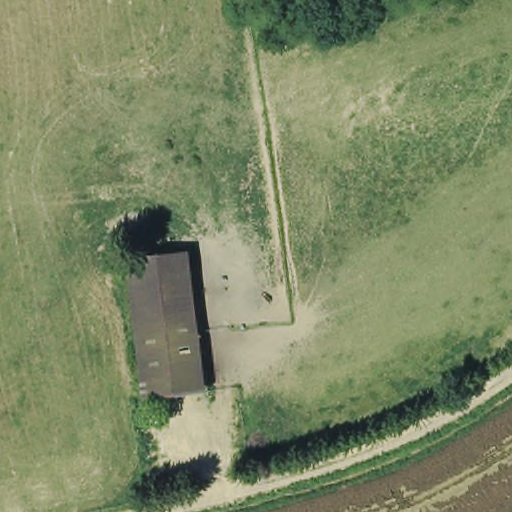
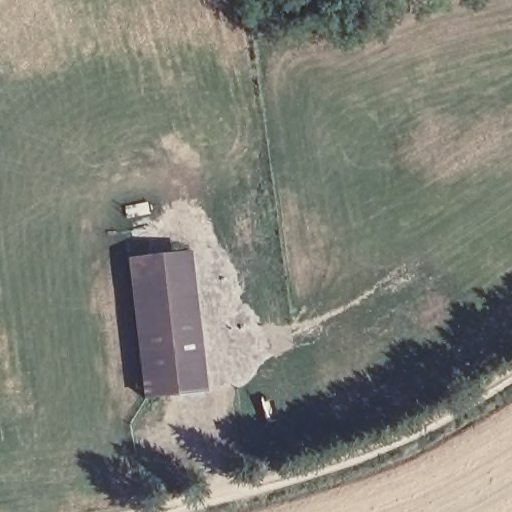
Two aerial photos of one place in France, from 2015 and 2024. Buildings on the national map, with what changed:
unchanged [(190,254),(204,392),(145,398),(132,260),(190,254)]

